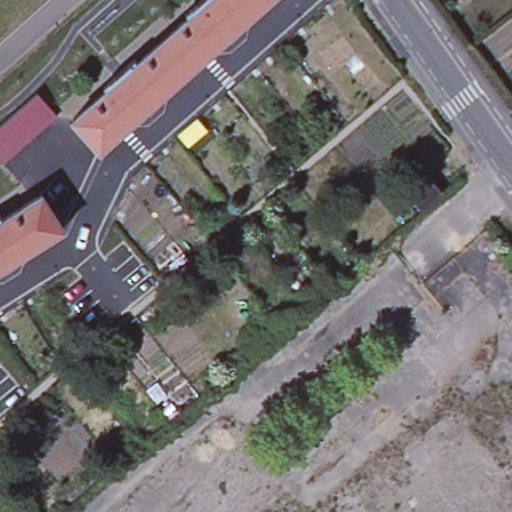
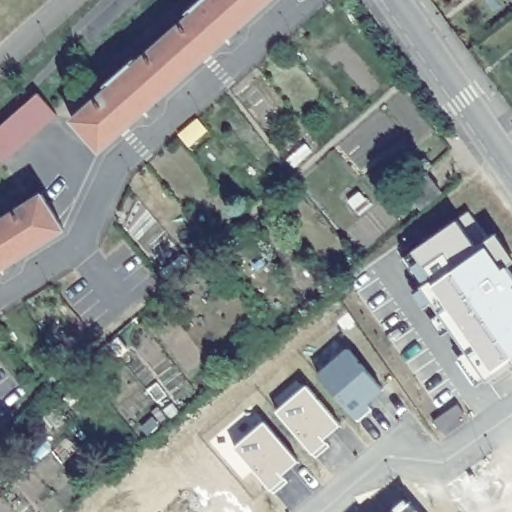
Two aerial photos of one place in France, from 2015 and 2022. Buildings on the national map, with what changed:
unchanged [(204,0),(267,0),(190,68),(162,37),(204,0)]
unchanged [(98,148),(72,118),(162,37),(190,68),(98,148)]
unchanged [(14,116),(23,108),(36,97),(56,119),(43,131),(34,139),(23,148),(12,158),(0,168),(0,167),(0,128),(3,125),(14,116)]
unchanged [(427,175),(443,193),(424,209),(408,191),(427,175)]
unchanged [(63,228),(0,267),(0,218),(41,192),(63,228)]
unchanged [(358,196),(367,208),(358,215),(349,203),(358,196)]
new [(468,213),(512,279),(512,366),(485,385),(402,260),(468,213)]
new [(348,349),(382,391),(366,405),(370,409),(357,423),(317,377),(348,349)]
new [(305,388),(339,427),(323,442),(327,444),(312,457),(275,413),(305,388)]
new [(263,424),(297,465),(282,477),(284,480),(270,492),(235,449),(263,424)]
new [(416,512),(397,512),(409,503),(416,512)]

